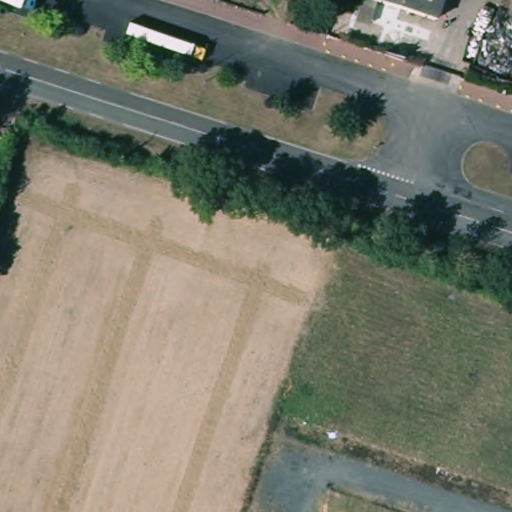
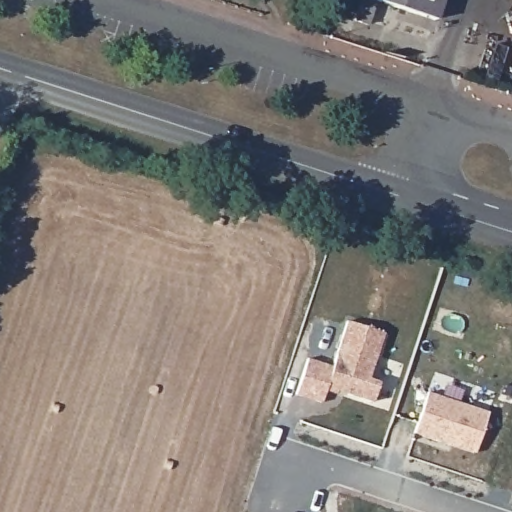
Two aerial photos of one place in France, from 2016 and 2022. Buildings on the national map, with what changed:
unchanged [(381,0),(444,0),(438,18),(381,0)]
new [(384,333),(369,377),(378,380),(372,402),(338,389),(336,394),(324,390),(321,402),(296,394),(308,359),(333,367),(346,321),(384,333)]
new [(427,392),(487,413),(475,453),(415,433),(427,392)]

